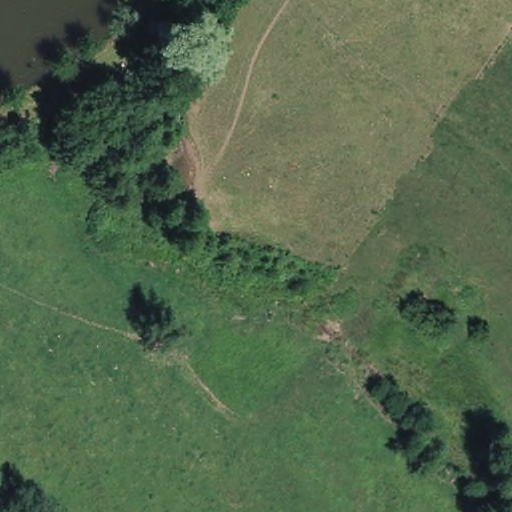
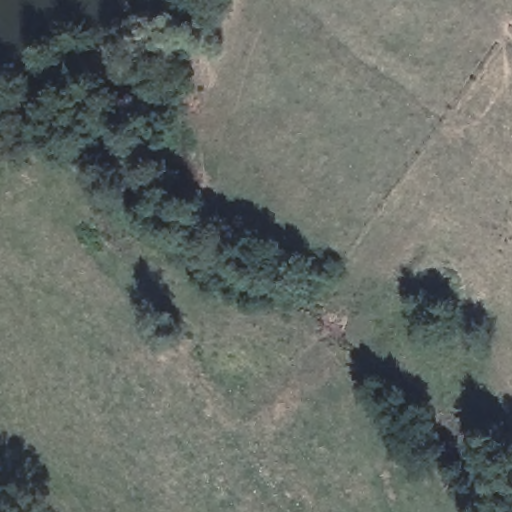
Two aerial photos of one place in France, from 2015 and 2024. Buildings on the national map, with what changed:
[]

